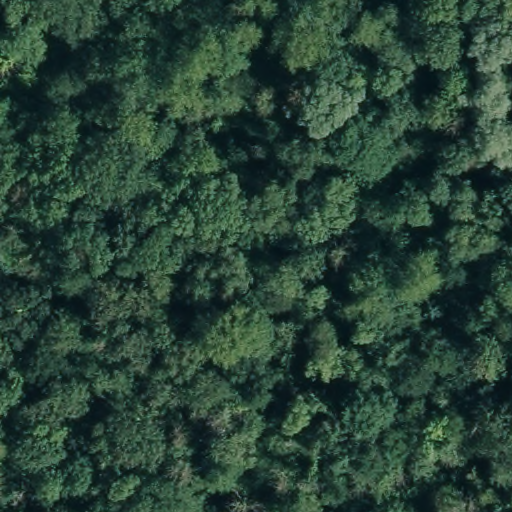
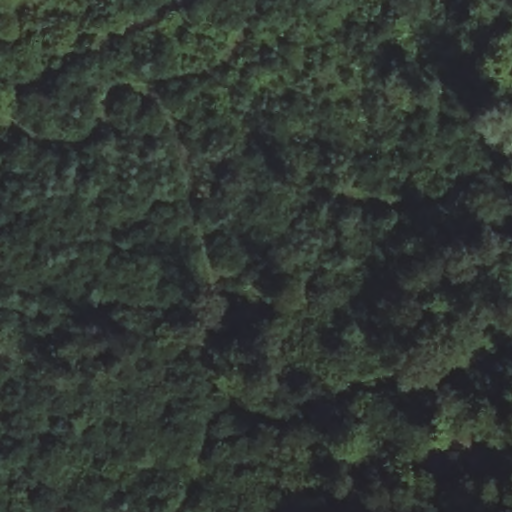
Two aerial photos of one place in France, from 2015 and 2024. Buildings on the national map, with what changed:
[]

